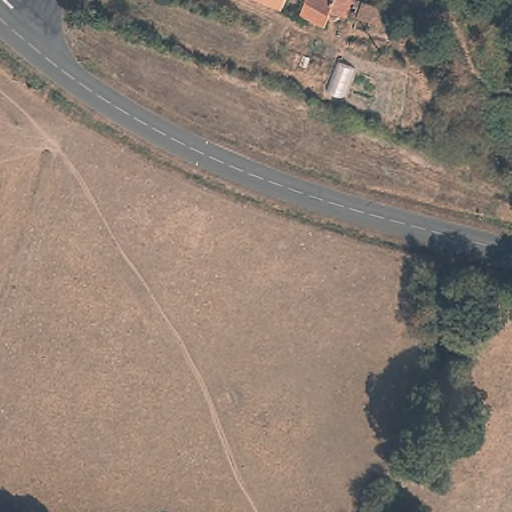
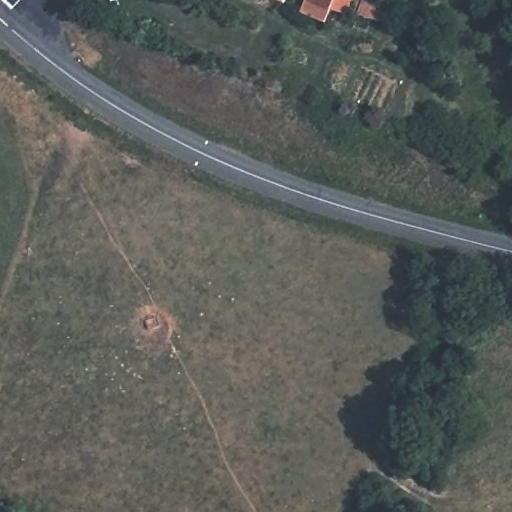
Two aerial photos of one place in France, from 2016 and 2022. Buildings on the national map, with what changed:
unchanged [(270,0),(288,0),(286,6),(270,0)]
unchanged [(347,16),(346,20),(331,14),(326,28),(302,18),(309,0),(349,0),(389,12),(385,28),(347,16)]

